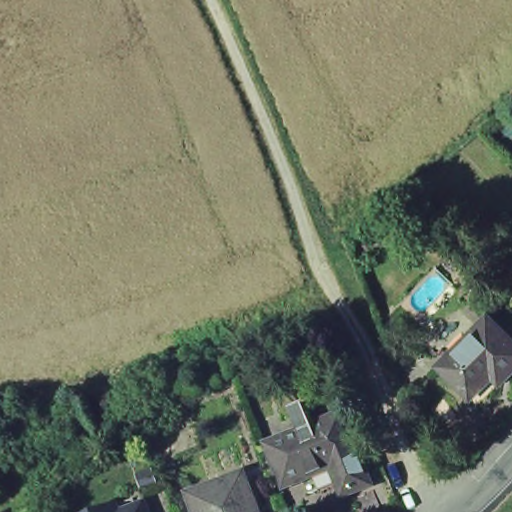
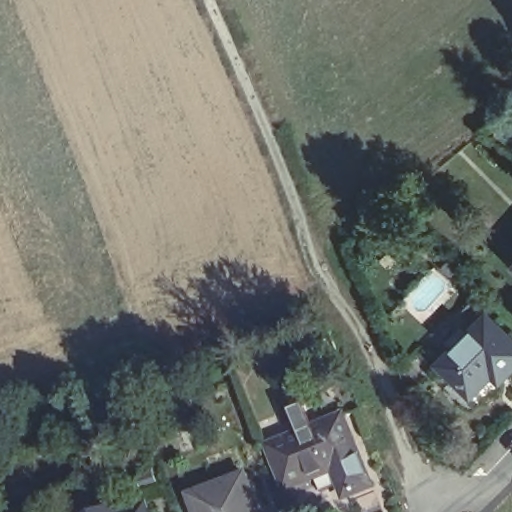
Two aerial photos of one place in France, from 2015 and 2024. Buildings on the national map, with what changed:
unchanged [(512,349),(512,368),(493,387),(486,380),(465,401),(434,370),(485,321),(512,349)]
unchanged [(290,482),(273,440),(306,428),(296,404),(298,404),(311,399),(320,422),(337,415),(347,411),(375,481),(365,485),(350,491),(345,479),(330,485),(325,487),(318,471),(290,482)]
unchanged [(194,496),(250,475),(264,512),(200,512),(194,496)]
unchanged [(151,505),(154,512),(130,512),(151,505)]
unchanged [(118,508),(120,509),(120,512),(108,512),(118,508)]

